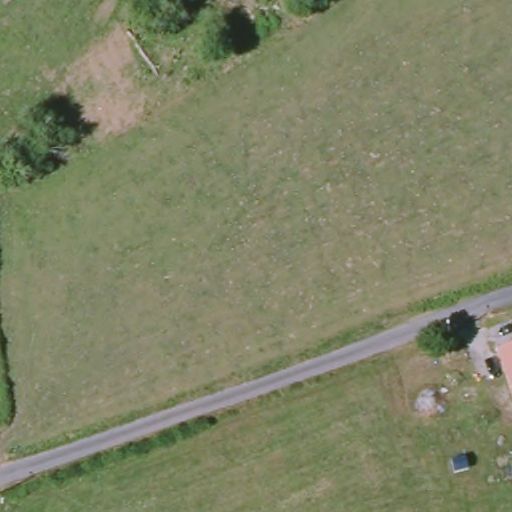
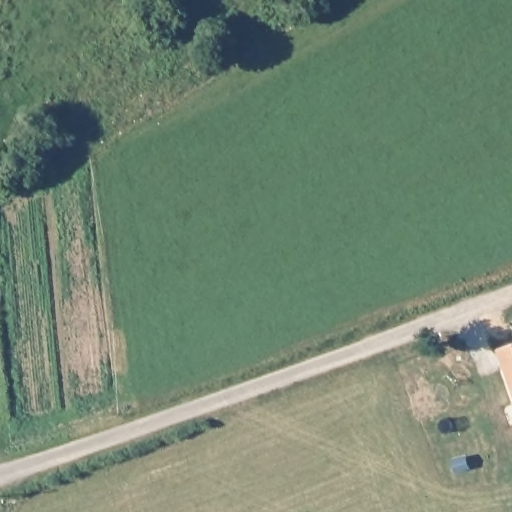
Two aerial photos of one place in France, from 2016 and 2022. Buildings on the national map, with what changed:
unchanged [(497,347),(512,342),(512,397),(497,347)]

